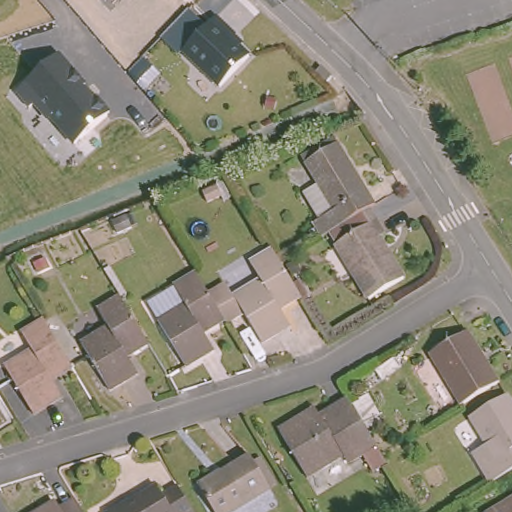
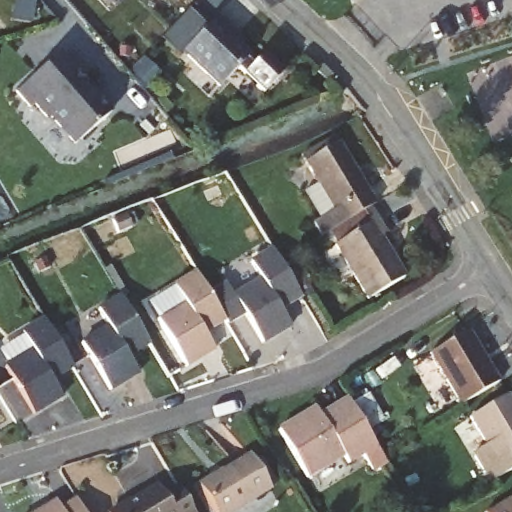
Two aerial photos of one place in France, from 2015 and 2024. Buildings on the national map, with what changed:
unchanged [(109,0),(112,0),(110,2),(109,0)]
unchanged [(203,26),(214,16),(244,45),(240,48),(249,58),(217,87),(182,52),(177,56),(160,39),(189,11),(203,26)]
unchanged [(112,117),(74,149),(33,105),(24,113),(10,96),(60,55),(112,117)]
unchanged [(405,277),(370,298),(336,243),(327,230),(320,235),(312,222),(320,217),(304,189),(317,181),(305,161),(301,155),(334,135),(339,142),(375,202),(369,205),(377,218),(386,232),(381,235),(405,277)]
unchanged [(208,201),(202,189),(216,183),(222,195),(208,201)]
unchanged [(280,259),(301,295),(281,308),(290,324),(262,340),(245,313),(227,324),(225,320),(208,293),(226,281),(235,295),(260,279),(251,262),(274,249),(280,259)]
unchanged [(204,332),(213,348),(187,364),(158,318),(186,301),(175,284),(196,272),(208,293),(225,320),(204,332)]
unchanged [(127,355),(137,372),(110,389),(82,343),(109,326),(97,309),(120,295),(149,342),(127,355)]
unchanged [(52,378),(61,395),(32,413),(5,366),(31,351),(22,333),(44,319),(72,366),(52,378)]
unchanged [(462,405),(430,355),(468,331),(500,382),(462,405)]
unchanged [(477,448),(491,441),(475,413),(512,390),(512,468),(495,478),(477,448)]
unchanged [(385,463),(372,472),(362,455),(350,462),(345,454),(307,477),(280,431),(310,412),(317,423),(350,403),(350,405),(367,394),(382,420),(365,429),(375,447),(380,455),(385,463)]
unchanged [(270,488),(231,512),(215,512),(199,487),(250,456),(270,488)]
unchanged [(193,512),(115,512),(157,487),(162,495),(178,486),(193,512)]
unchanged [(512,496),(512,512),(486,512),(512,496)]
unchanged [(50,501),(57,509),(77,497),(85,512),(32,512),(50,501)]

